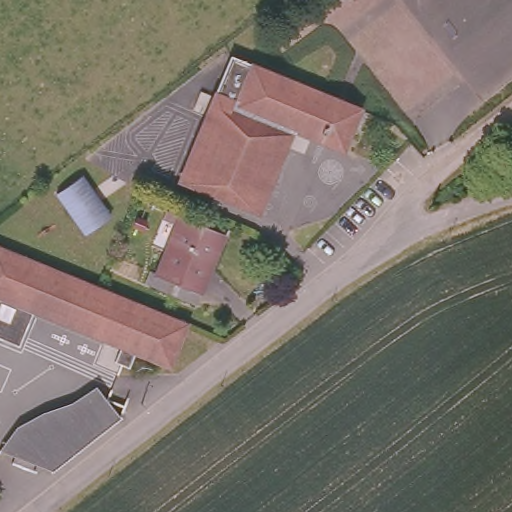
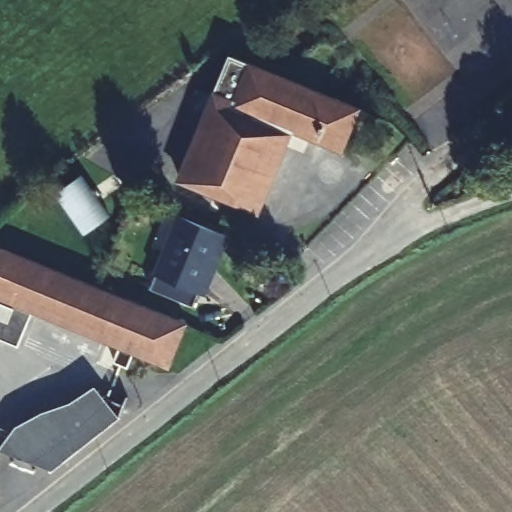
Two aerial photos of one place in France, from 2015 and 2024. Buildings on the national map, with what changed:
unchanged [(216,92),(236,100),(253,64),(359,105),(341,145),(293,125),(258,209),(181,178),(216,92)]
unchanged [(113,222),(81,241),(56,200),(86,180),(113,222)]
unchanged [(179,215),(221,232),(201,288),(196,301),(146,282),(151,269),(156,271),(157,270),(179,215)]
unchanged [(20,355),(0,348),(0,258),(186,331),(169,374),(135,361),(128,377),(111,371),(118,354),(34,322),(20,355)]
unchanged [(50,478),(0,458),(8,443),(13,435),(25,427),(35,424),(71,416),(82,412),(104,399),(121,422),(50,478)]

